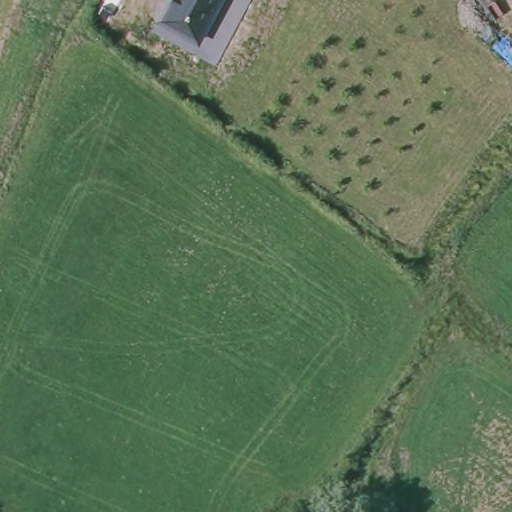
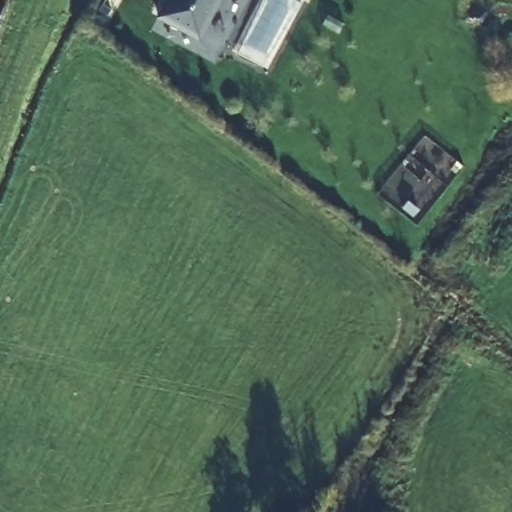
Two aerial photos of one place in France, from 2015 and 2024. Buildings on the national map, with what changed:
unchanged [(167,0),(218,0),(199,35),(158,17),(167,0)]
new [(253,0),(285,0),(291,3),(252,67),(227,54),(253,0)]

